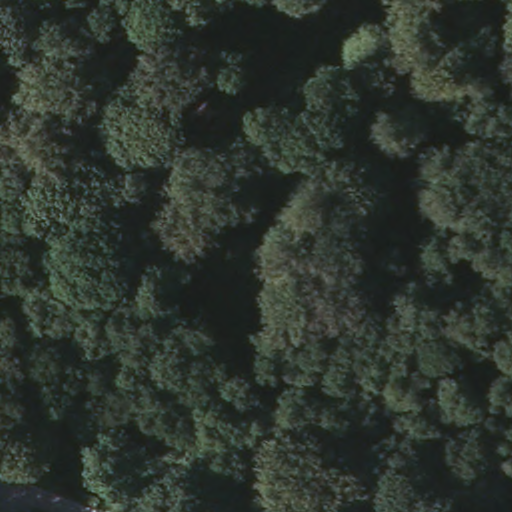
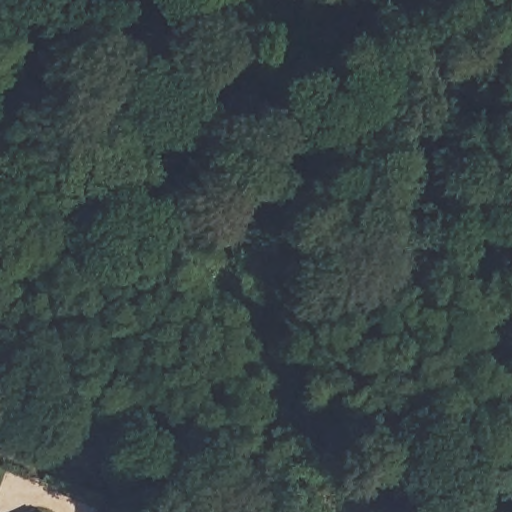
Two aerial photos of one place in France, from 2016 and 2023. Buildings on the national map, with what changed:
unchanged [(0,508),(2,512),(0,512),(0,508)]
unchanged [(42,508),(44,512),(34,512),(42,508)]

